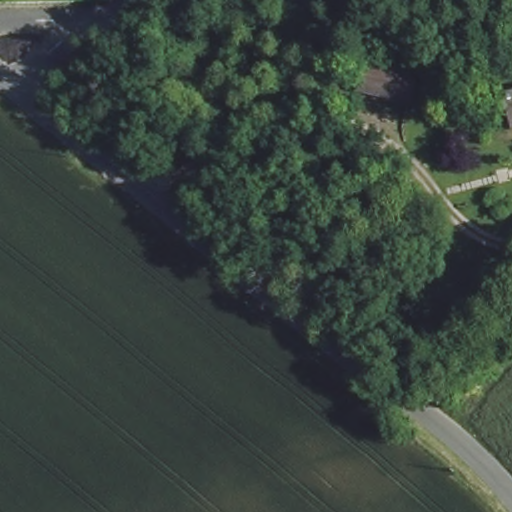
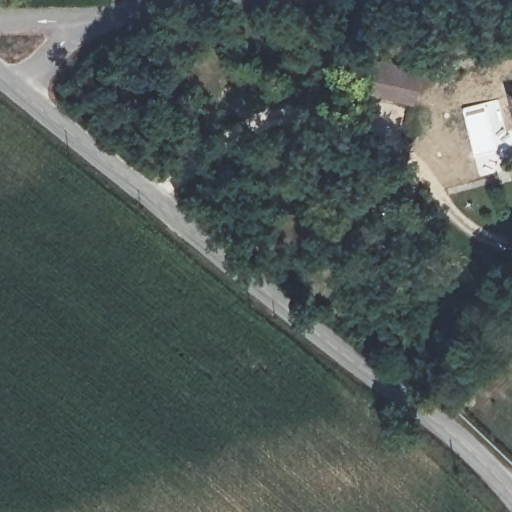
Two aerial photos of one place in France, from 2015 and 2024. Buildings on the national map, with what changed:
unchanged [(365,85),(372,58),(419,71),(410,97),(365,85)]

